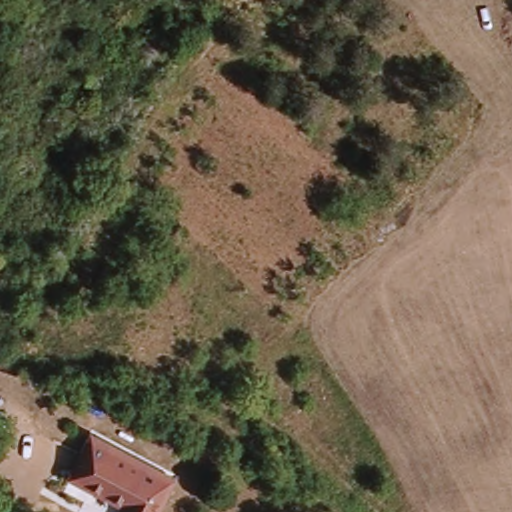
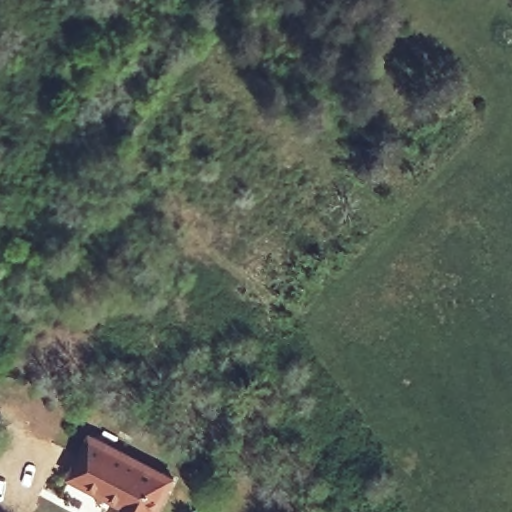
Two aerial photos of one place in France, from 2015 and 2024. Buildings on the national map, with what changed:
unchanged [(93,433),(177,477),(158,512),(123,512),(127,504),(71,475),(93,433)]

